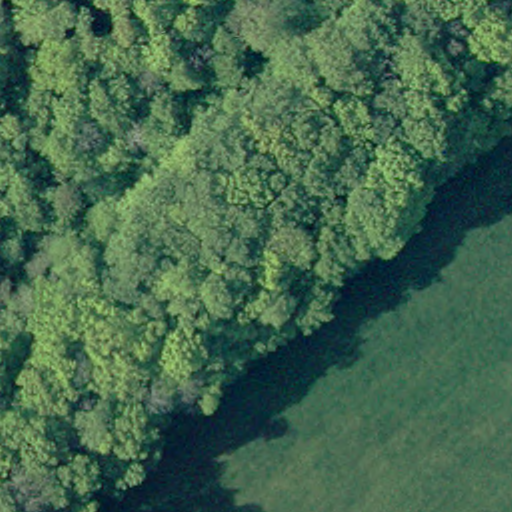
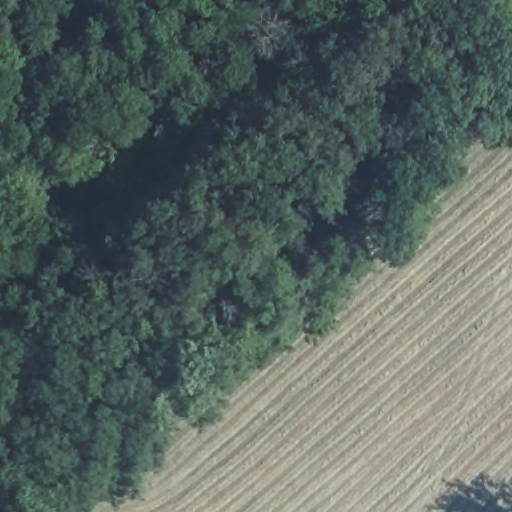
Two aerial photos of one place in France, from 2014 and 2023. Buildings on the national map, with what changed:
unchanged [(512,0),(512,1),(511,0),(512,0)]

